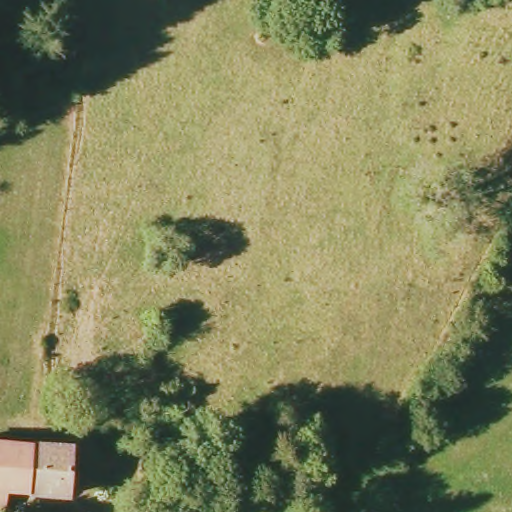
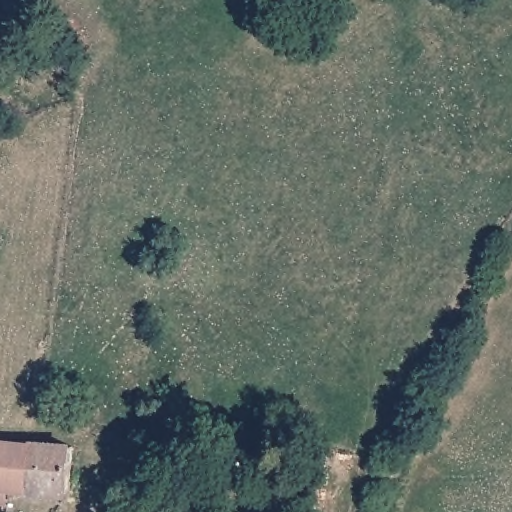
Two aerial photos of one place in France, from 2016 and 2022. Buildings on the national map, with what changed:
unchanged [(71,453),(71,491),(10,492),(11,512),(0,512),(0,445),(30,446),(70,447),(71,453)]

